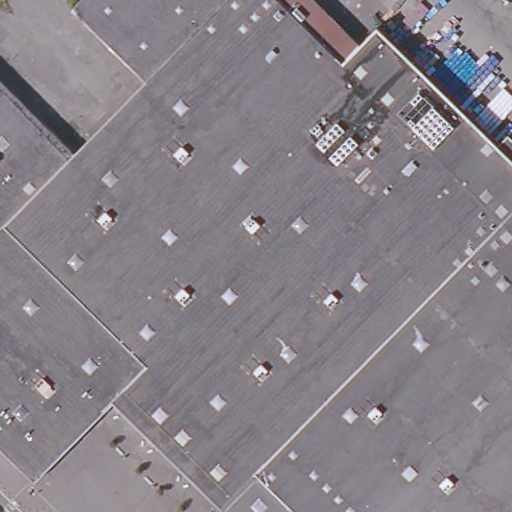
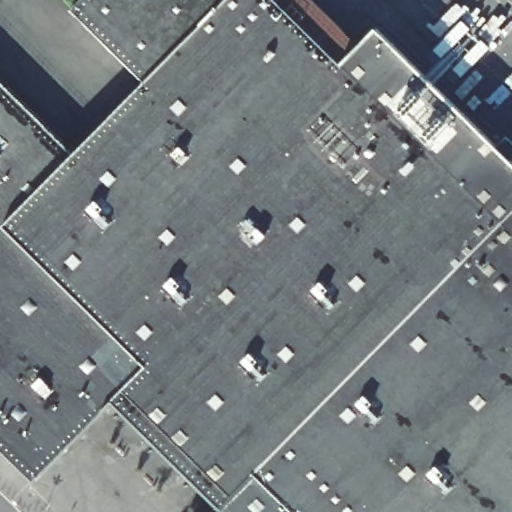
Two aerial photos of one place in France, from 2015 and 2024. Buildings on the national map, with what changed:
unchanged [(377,29),(496,145),(508,135),(512,138),(512,156),(510,158),(512,160),(512,512),(297,512),(296,512),(221,512),(113,403),(35,480),(0,446),(0,74),(77,151),(146,80),(72,9),(80,0),(318,0),(363,42),(377,29)]

